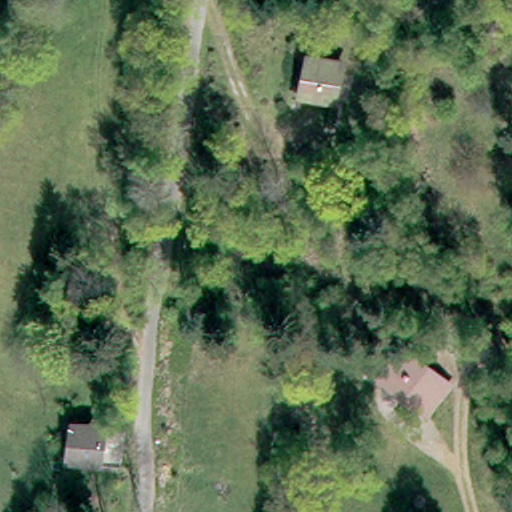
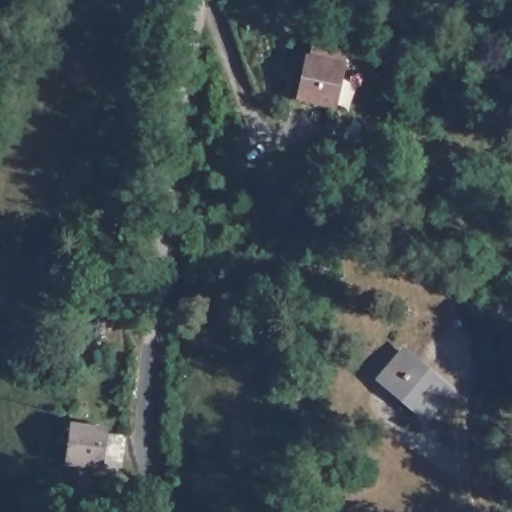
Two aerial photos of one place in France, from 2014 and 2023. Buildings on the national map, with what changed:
unchanged [(326,103),(295,98),(303,53),(333,58),(326,103)]
unchanged [(413,357),(410,360),(428,377),(432,372),(443,383),(420,411),(407,400),(412,395),(395,376),(390,381),(378,369),(402,346),(413,357)]
unchanged [(105,455),(54,453),(57,423),(107,425),(105,455)]

